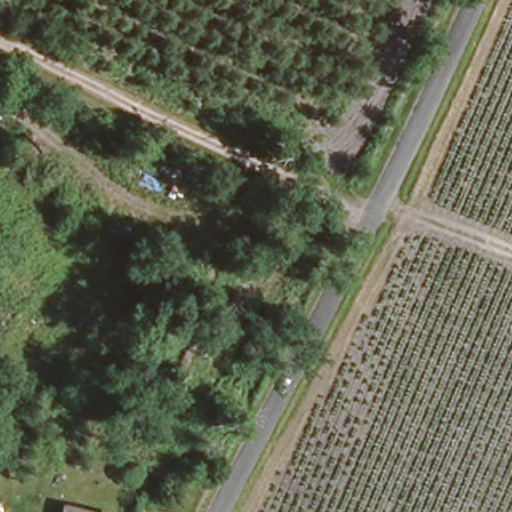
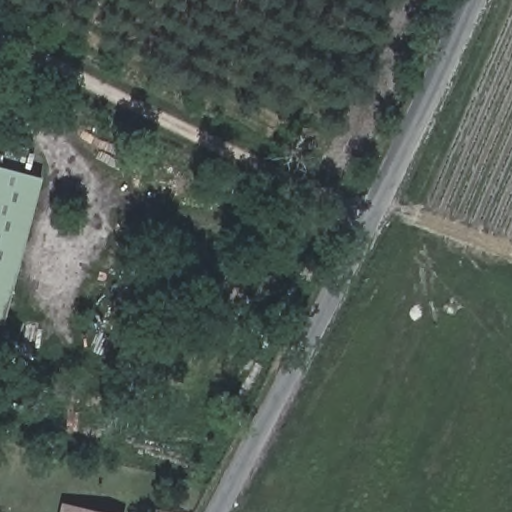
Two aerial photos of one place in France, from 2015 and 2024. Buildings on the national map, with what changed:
new [(0,324),(0,167),(42,178),(3,325),(0,324)]
unchanged [(114,512),(59,512),(62,502),(114,512)]
unchanged [(162,512),(133,512),(135,507),(162,512)]

